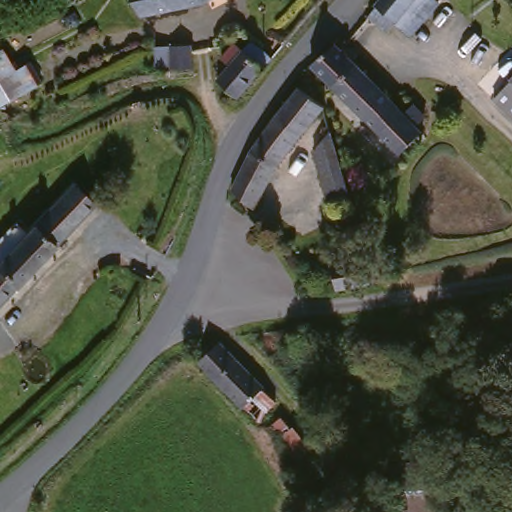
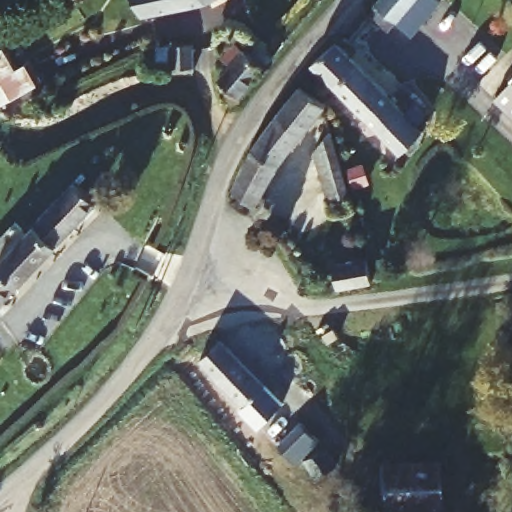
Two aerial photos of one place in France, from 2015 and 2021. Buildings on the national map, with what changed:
unchanged [(181,6),(172,7),(154,7),(137,5),(137,0),(204,0),(191,6),(181,6)]
unchanged [(432,0),(436,4),(407,34),(379,6),(384,0),(432,0)]
unchanged [(251,42),(251,41),(274,60),(233,101),(211,79),(251,42)]
unchanged [(424,126),(388,162),(375,149),(384,140),(333,86),(313,66),(340,42),(358,60),(395,98),(424,125),(424,126)]
unchanged [(0,50),(1,49),(13,66),(26,59),(41,80),(13,97),(0,80),(0,50)]
unchanged [(494,99),(512,77),(512,115),(494,99)]
unchanged [(273,165),(256,145),(293,93),(301,85),(321,102),(322,102),(273,166),(273,165)]
unchanged [(330,209),(314,146),(329,125),(349,203),(330,209)]
unchanged [(253,209),(234,191),(256,145),(273,165),(273,166),(253,209)]
unchanged [(28,233),(76,180),(96,199),(0,311),(0,238),(14,221),(28,233)]
unchanged [(339,289),(331,261),(356,255),(366,280),(339,289)]
unchanged [(217,351),(220,348),(269,396),(253,415),(203,367),(217,351)]
unchanged [(324,440),(328,446),(331,450),(334,461),(324,466),(309,449),(319,438),(324,440)]
unchanged [(441,512),(392,512),(385,470),(434,465),(441,512)]

